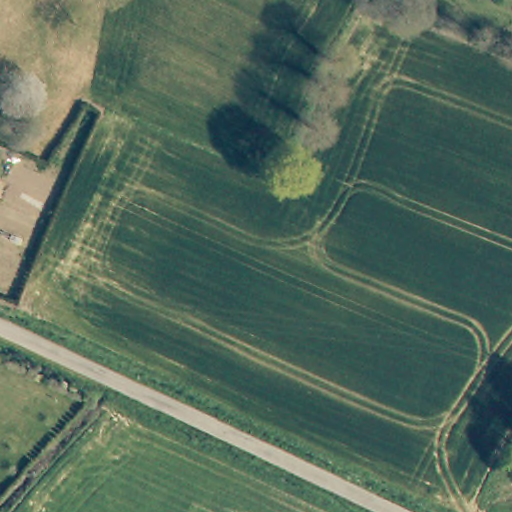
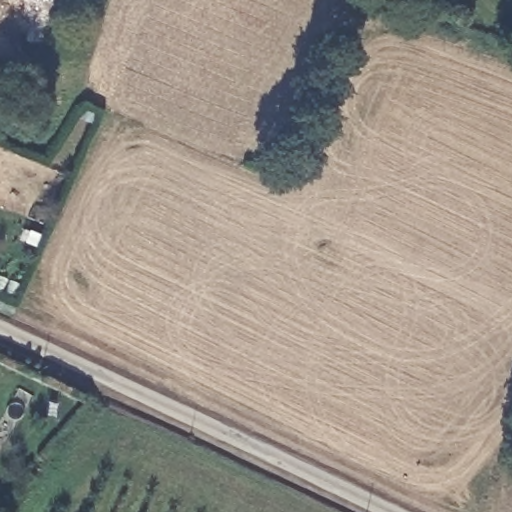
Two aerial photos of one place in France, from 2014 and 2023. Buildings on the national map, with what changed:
[]

